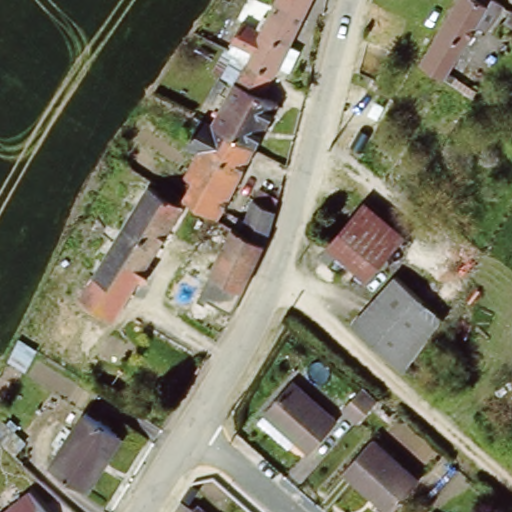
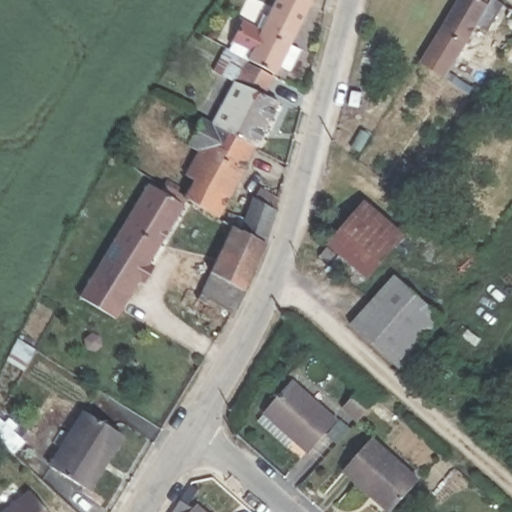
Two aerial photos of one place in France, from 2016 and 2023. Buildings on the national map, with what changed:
unchanged [(283,70),(289,73),(285,79),(252,62),(255,57),(233,45),(243,26),(264,37),(284,0),(319,0),(283,70)]
unchanged [(442,79),(418,64),(457,0),(494,0),(500,4),(483,32),(475,26),(446,72),(472,90),(468,96),(442,79)]
unchanged [(498,21),(506,8),(512,12),(512,29),(511,30),(498,21)]
unchanged [(260,150),(217,127),(252,65),(278,80),(270,97),(283,105),(260,150)]
unchanged [(225,218),(190,199),(197,185),(190,180),(203,155),(191,148),(193,144),(185,139),(193,123),(202,128),(206,121),(217,127),(260,150),(225,218)]
unchanged [(120,324),(86,303),(155,188),(189,208),(125,315),(120,324)]
unchanged [(246,231),(267,189),(285,198),(278,227),(270,244),(246,231)]
unchanged [(347,246),(338,239),(373,199),(395,217),(414,232),(380,274),(360,258),(347,246)]
unchanged [(237,316),(208,299),(221,278),(215,273),(231,239),(221,234),(228,220),(246,231),(270,244),(240,311),(237,316)]
unchanged [(337,258),(329,251),(337,241),(346,248),(337,258)]
unchanged [(408,313),(405,317),(376,292),(387,278),(390,280),(437,322),(430,332),(408,313)]
unchanged [(347,327),(376,292),(405,317),(408,313),(430,332),(400,372),(347,327)]
unchanged [(347,403),(368,379),(382,391),(360,415),(347,403)]
unchanged [(261,422),(268,414),(296,382),(341,421),(313,453),(297,440),(291,448),(261,422)]
unchanged [(85,409),(118,432),(80,486),(47,462),(85,409)]
unchanged [(420,481),(393,512),(392,512),(346,472),(373,440),(420,481)]
unchanged [(48,512),(6,512),(31,491),(48,512)]
unchanged [(195,510),(200,504),(209,512),(175,512),(182,499),(195,510)]

